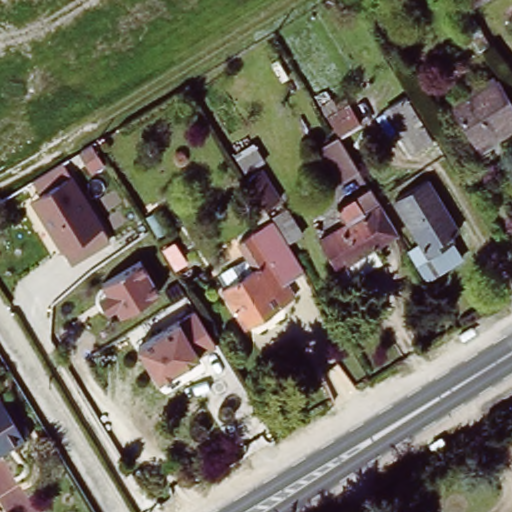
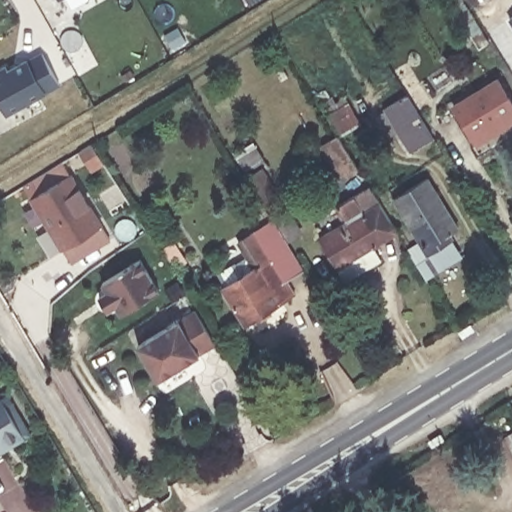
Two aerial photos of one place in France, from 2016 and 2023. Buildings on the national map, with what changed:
new [(512,17),(512,23),(509,18),(512,17)]
new [(0,103),(0,68),(6,65),(8,68),(27,58),(28,60),(41,52),(60,84),(45,92),(7,115),(0,103)]
unchanged [(512,108),(512,124),(475,146),(449,103),(493,76),(512,108)]
unchanged [(411,158),(383,113),(405,99),(433,145),(411,158)]
unchanged [(350,180),(331,147),(350,135),(370,168),(350,180)]
unchanged [(432,269),(418,277),(400,248),(413,240),(383,189),(416,170),(446,220),(440,224),(448,236),(458,254),(432,269)]
unchanged [(111,242),(70,265),(63,252),(60,254),(27,199),(71,174),(111,242)]
unchanged [(365,187),(396,234),(370,250),(378,264),(341,287),(315,244),(342,226),(331,208),(365,187)]
unchanged [(245,271),(232,247),(272,223),(269,218),(285,208),(303,238),(288,247),(303,272),(285,283),(295,299),(240,332),(215,289),(245,271)]
unchanged [(156,290),(119,313),(101,281),(139,261),(156,290)]
unchanged [(215,342),(158,377),(139,342),(195,310),(215,342)]
unchanged [(15,391),(32,418),(18,427),(26,440),(21,443),(0,456),(0,400),(15,391)]

